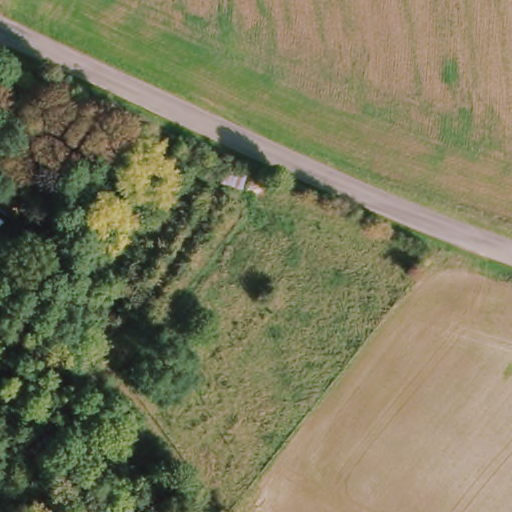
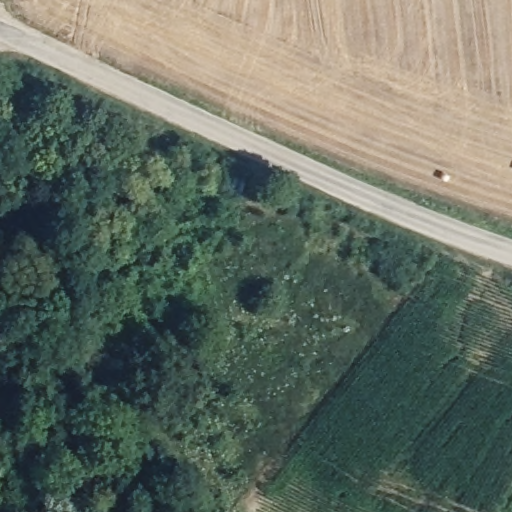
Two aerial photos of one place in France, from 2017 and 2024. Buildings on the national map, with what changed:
unchanged [(10,218),(0,208),(0,180),(25,203),(10,218)]

